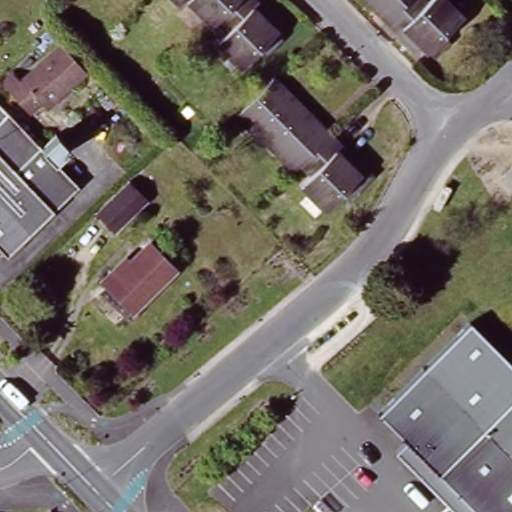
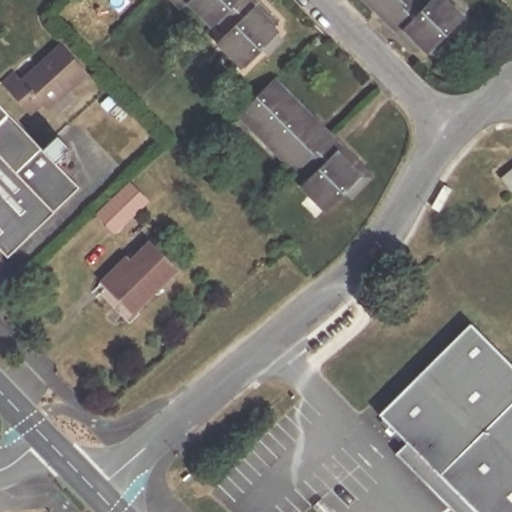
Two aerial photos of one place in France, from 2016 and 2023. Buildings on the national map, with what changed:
unchanged [(210,27),(186,4),(179,11),(167,0),(237,0),(214,23),(210,27)]
unchanged [(240,70),(215,44),(225,34),(214,23),(237,0),(250,0),(273,22),(268,27),(275,34),(282,41),(266,57),(259,51),(240,70)]
unchanged [(378,13),(382,8),(374,0),(413,0),(390,24),(378,13)]
unchanged [(423,47),(418,52),(390,24),(413,0),(426,0),(430,3),(433,0),(444,0),(464,19),(446,37),(452,43),(436,60),(430,54),(423,47)]
unchanged [(18,81),(57,45),(84,75),(43,112),(38,106),(27,116),(0,87),(0,83),(11,72),(18,81)]
unchanged [(297,171),(291,177),(248,134),(251,131),(237,118),(270,85),(291,106),(287,110),(311,134),(315,130),(327,142),(297,171)]
unchanged [(53,137),(66,150),(51,164),(75,189),(3,258),(0,254),(0,111),(38,151),(53,137)]
unchanged [(341,199),(323,217),(297,191),(307,181),(297,171),(327,142),(356,171),(368,184),(347,205),(341,199)]
unchanged [(512,165),(512,184),(508,187),(497,174),(510,163),(512,165)]
unchanged [(135,204),(111,228),(93,210),(125,179),(142,197),(135,204)]
unchanged [(446,187),(435,207),(430,204),(440,183),(446,187)]
unchanged [(108,287),(103,282),(123,263),(128,268),(147,249),(172,274),(134,313),(108,287)]
unchanged [(470,322),(512,365),(512,512),(454,512),(393,451),(406,440),(378,413),(470,322)]

